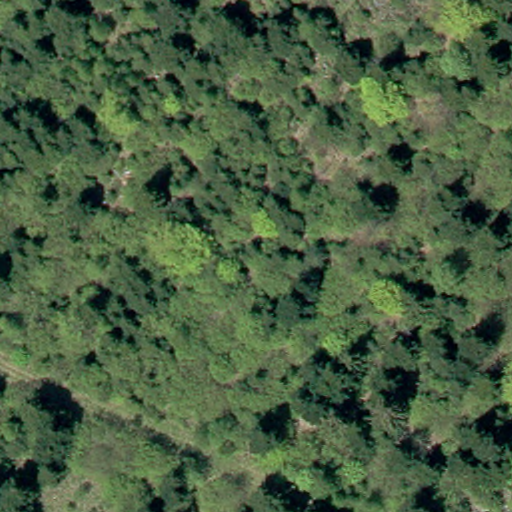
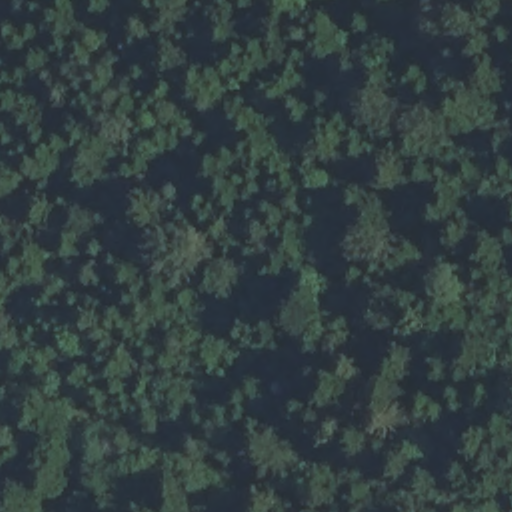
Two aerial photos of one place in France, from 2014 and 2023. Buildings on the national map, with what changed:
[]

